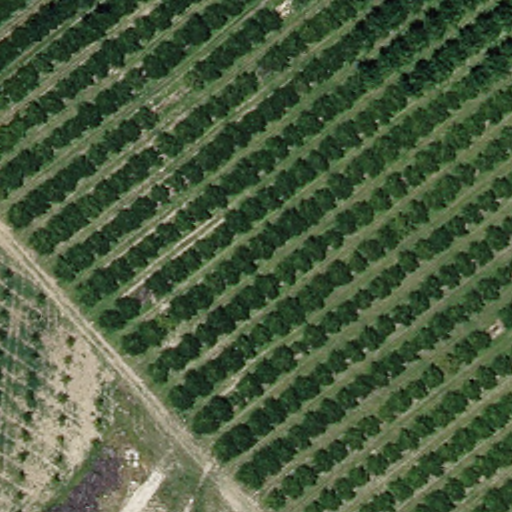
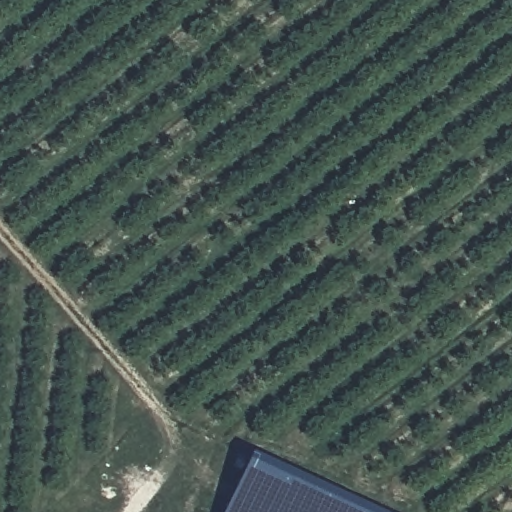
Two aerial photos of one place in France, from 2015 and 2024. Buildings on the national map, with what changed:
new [(374,512),(224,512),(250,456),(374,512)]

